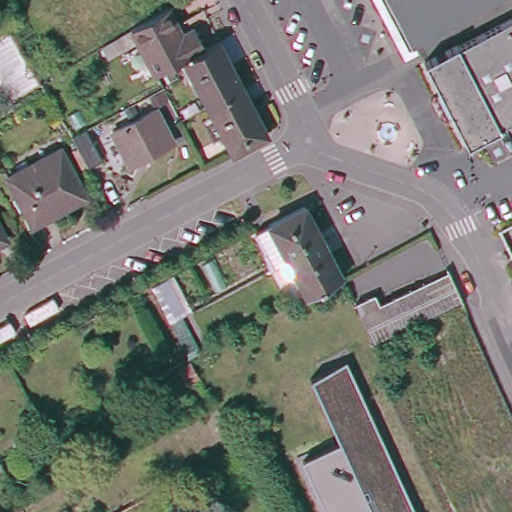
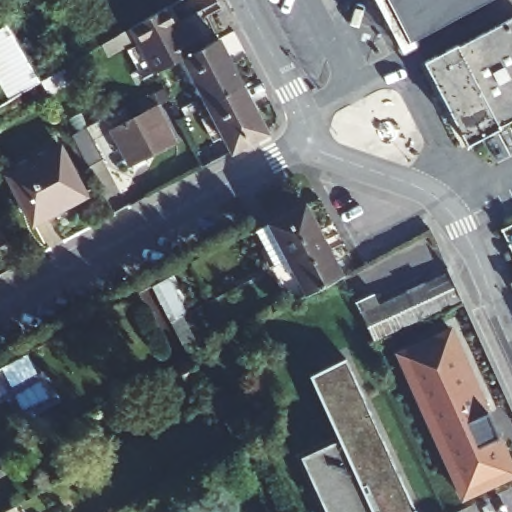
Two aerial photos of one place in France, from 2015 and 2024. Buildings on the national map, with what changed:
unchanged [(416,34),(409,37),(404,28),(389,0),(479,0),(416,34)]
unchanged [(168,1),(181,26),(191,21),(202,42),(181,54),(153,69),(130,23),(168,1)]
unchanged [(459,41),(512,14),(512,113),(499,120),(502,124),(466,142),(460,131),(447,105),(433,78),(422,55),(457,36),(459,41)]
unchanged [(9,103),(0,85),(0,32),(7,28),(39,85),(9,103)]
unchanged [(239,84),(204,101),(181,54),(202,42),(215,36),(239,84)]
unchanged [(228,148),(204,101),(239,84),(263,130),(228,148)]
unchanged [(165,142),(135,158),(117,125),(148,109),(165,142)]
unchanged [(79,124),(98,156),(83,164),(65,132),(79,124)]
unchanged [(82,192),(28,221),(3,173),(55,144),(82,192)]
unchanged [(286,255),(272,262),(254,228),(304,201),(321,236),(286,255)]
unchanged [(6,235),(0,238),(0,224),(6,235)]
unchanged [(340,273),(304,292),(286,255),(321,236),(340,273)]
unchanged [(351,300),(369,291),(375,303),(444,270),(457,295),(457,296),(368,337),(356,311),(351,300)]
unchanged [(512,274),(512,288),(507,277),(512,274)]
unchanged [(173,275),(191,310),(183,315),(202,352),(187,359),(149,287),(173,275)]
new [(512,472),(512,478),(449,507),(379,347),(449,318),(512,472)]
demolished [(399,354),(386,360),(379,347),(393,341),(399,354)]
unchanged [(311,377),(344,360),(415,512),(326,512),(299,459),(339,440),(311,377)]
unchanged [(196,376),(184,382),(178,370),(191,364),(196,376)]
demolished [(512,505),(482,439),(511,425),(512,427),(512,505)]
unchanged [(16,500),(23,512),(0,512),(0,509),(13,502),(16,500)]

